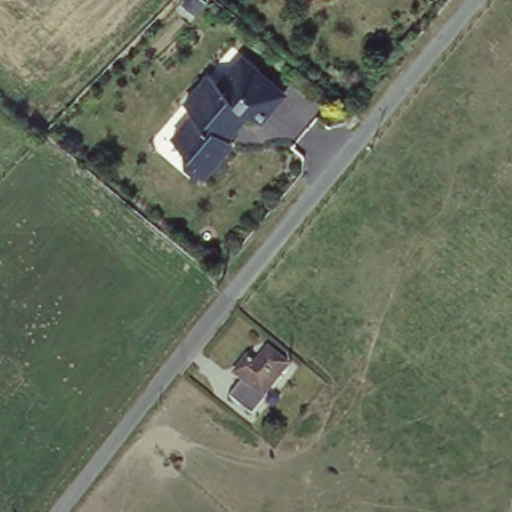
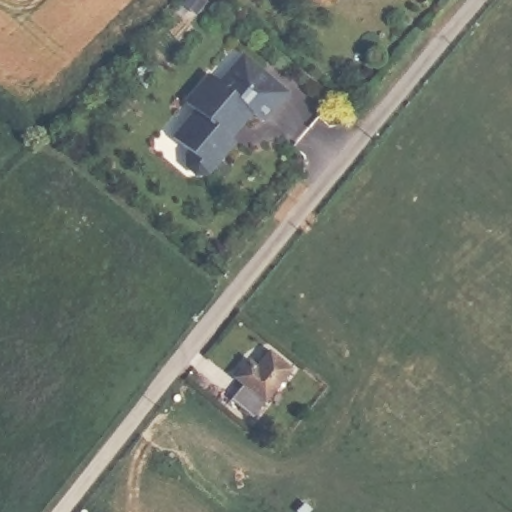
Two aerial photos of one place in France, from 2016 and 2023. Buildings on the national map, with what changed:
unchanged [(272,116),(258,105),(236,134),(240,138),(214,168),(197,172),(187,163),(190,146),(173,131),(198,99),(188,93),(210,64),(220,75),(241,47),(295,85),(272,116)]
unchanged [(273,364),(285,349),(303,362),(264,412),(247,398),(260,381),(245,368),(257,350),(273,364)]

